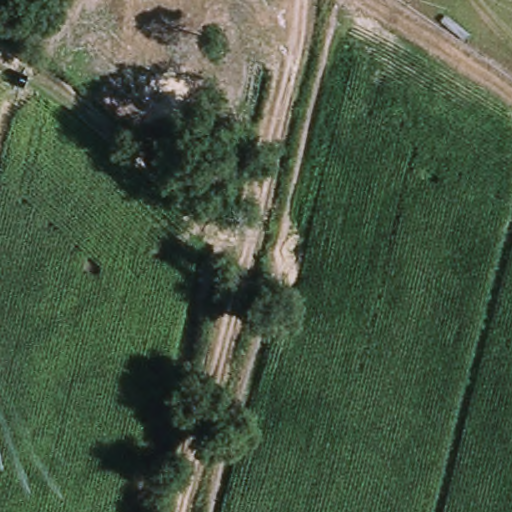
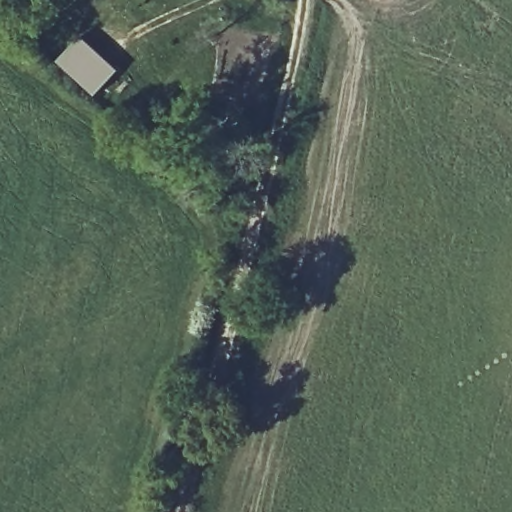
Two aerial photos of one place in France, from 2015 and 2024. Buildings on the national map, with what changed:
new [(60,59),(83,35),(118,67),(96,92),(60,59)]

